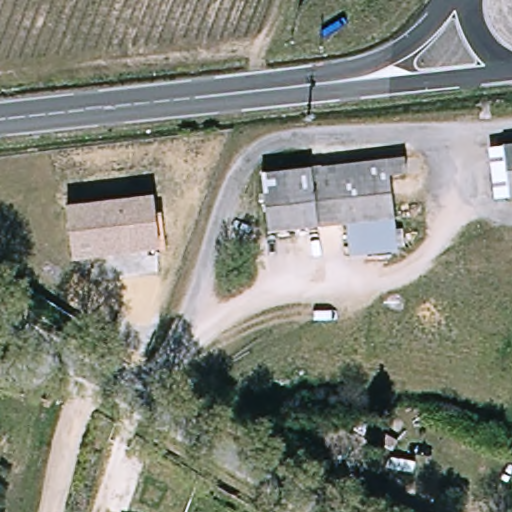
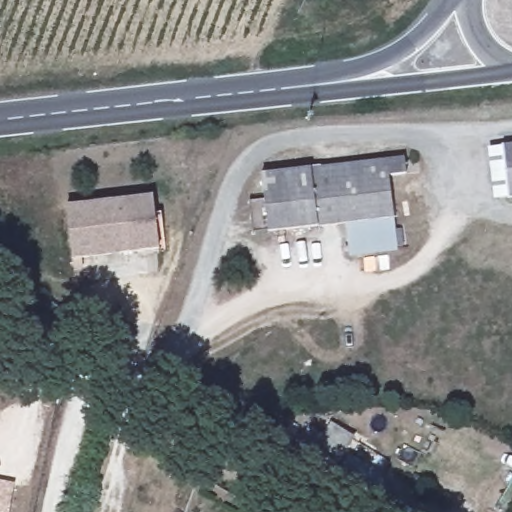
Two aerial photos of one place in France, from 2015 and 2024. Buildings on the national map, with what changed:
unchanged [(512,204),(510,204),(503,153),(512,152),(512,204)]
unchanged [(411,161),(413,175),(395,178),(400,219),(351,225),(276,234),(269,178),(411,161)]
unchanged [(154,198),(161,248),(75,258),(68,209),(154,198)]
unchanged [(400,219),(404,245),(354,251),(351,225),(400,219)]
unchanged [(397,430),(389,447),(357,429),(367,412),(397,430)]
unchanged [(353,444),(339,468),(322,458),(328,448),(320,444),(328,429),(353,444)]
new [(15,483),(10,512),(0,512),(0,481),(15,483)]

